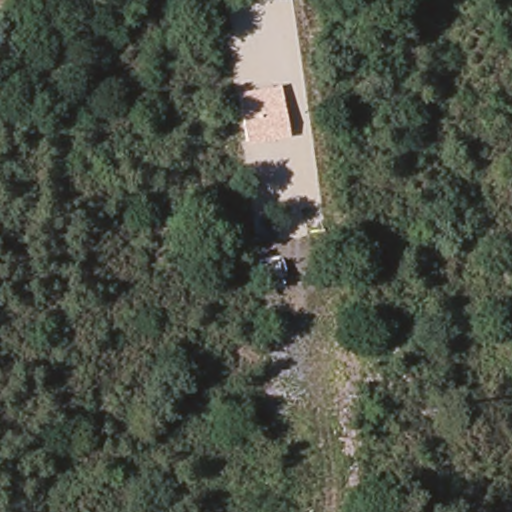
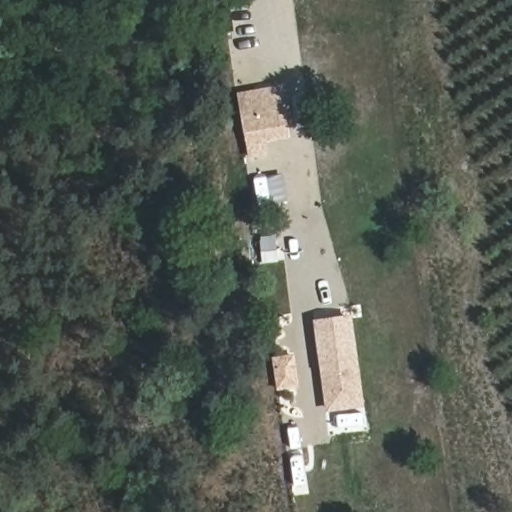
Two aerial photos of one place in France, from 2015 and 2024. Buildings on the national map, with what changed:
unchanged [(277,94),(285,135),(247,141),(240,101),(277,94)]
new [(351,320),(362,407),(329,411),(318,325),(351,320)]
new [(294,358),(299,387),(280,390),(276,361),(294,358)]

